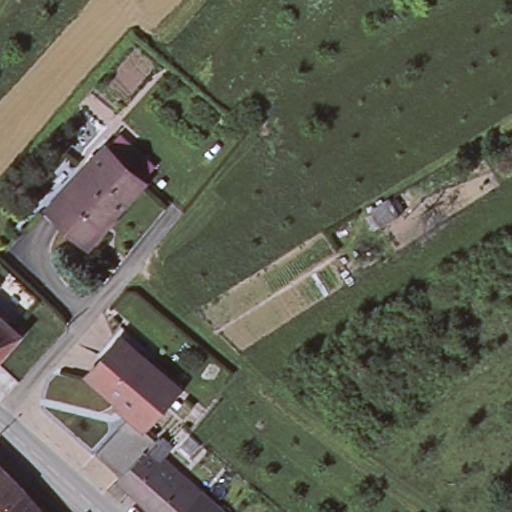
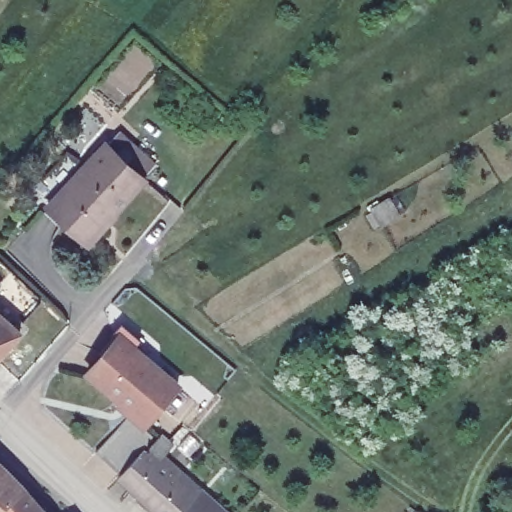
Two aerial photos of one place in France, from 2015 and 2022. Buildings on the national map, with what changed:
unchanged [(146,172),(115,205),(113,202),(86,231),(50,198),(108,136),(146,172)]
unchanged [(390,199),(399,214),(380,225),(370,210),(390,199)]
unchanged [(19,327),(0,348),(0,310),(19,327)]
unchanged [(118,403),(121,400),(87,371),(124,329),(140,343),(138,345),(180,381),(143,423),(129,412),(118,403)]
unchanged [(118,475),(107,488),(82,466),(129,412),(143,423),(141,425),(155,437),(159,433),(171,443),(158,459),(196,493),(212,507),(217,512),(158,512),(118,475)]
unchanged [(0,505),(0,459),(25,484),(0,505)]
unchanged [(25,484),(49,512),(0,512),(0,505),(25,484)]

